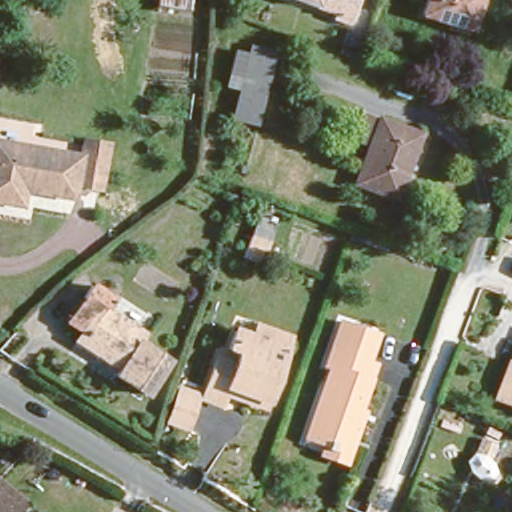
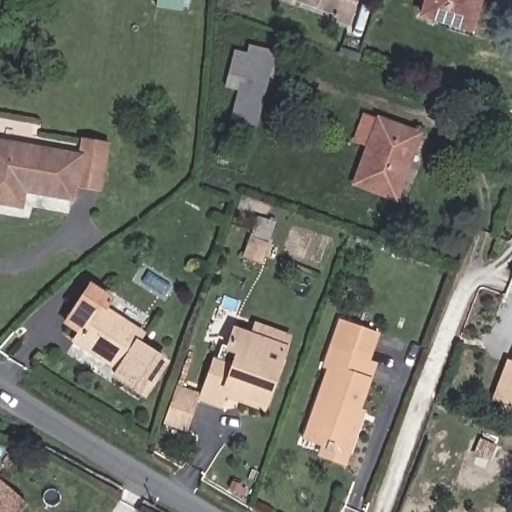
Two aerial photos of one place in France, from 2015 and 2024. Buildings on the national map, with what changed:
unchanged [(156,5),(157,0),(183,0),(182,8),(156,5)]
unchanged [(327,13),(330,9),(304,0),(351,0),(344,19),(327,13)]
unchanged [(421,9),(424,0),(477,0),(470,24),(421,9)]
unchanged [(251,118),(227,113),(237,72),(224,68),(229,45),(243,48),(245,41),(268,47),(251,118)]
unchanged [(390,188),(349,173),(362,137),(350,132),(361,103),(373,108),(415,123),(390,188)]
unchanged [(94,184),(68,179),(66,192),(17,183),(15,200),(0,197),(0,137),(74,151),(77,133),(103,138),(94,184)]
unchanged [(102,303),(141,328),(136,336),(165,355),(142,389),(114,371),(119,363),(74,334),(80,325),(66,316),(89,280),(109,293),(102,303)]
unchanged [(262,403),(245,397),(247,390),(226,382),(223,389),(220,400),(200,393),(215,353),(232,359),(237,346),(227,343),(234,325),(249,330),(254,316),(288,329),(262,403)]
unchanged [(357,410),(353,408),(350,417),(358,420),(349,447),(326,439),(324,443),(305,437),(330,366),(325,364),(341,321),(376,333),(366,362),(373,364),(357,410)]
unchanged [(508,361),(511,362),(512,363),(512,405),(495,398),(508,361)]
unchanged [(187,421),(166,413),(175,387),(197,395),(187,421)]
unchanged [(16,512),(0,512),(0,483),(24,503),(16,512)]

